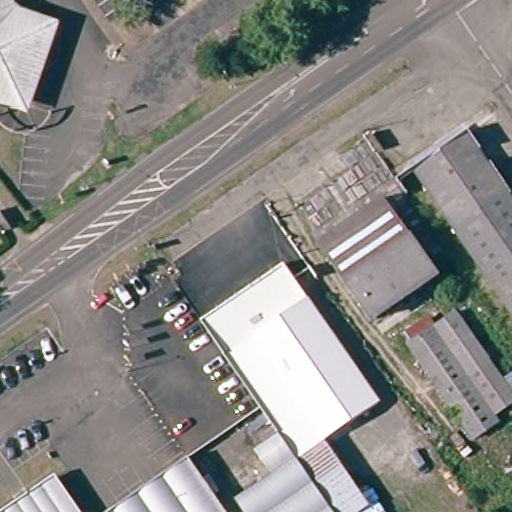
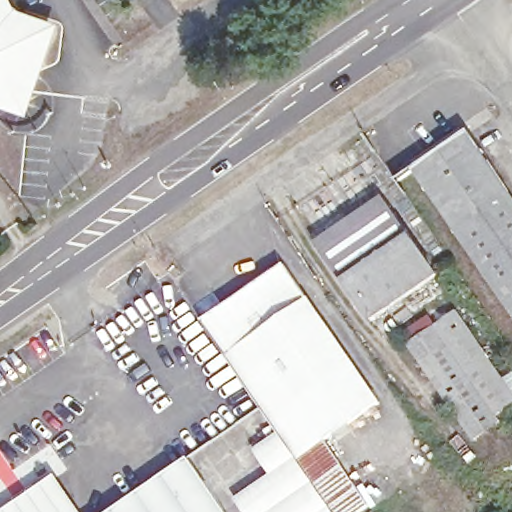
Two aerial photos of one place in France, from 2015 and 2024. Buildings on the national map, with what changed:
unchanged [(6,0),(10,8),(52,21),(35,71),(26,99),(0,90),(0,0),(6,0)]
unchanged [(512,194),(512,306),(415,167),(468,131),(512,194)]
unchanged [(437,271),(374,315),(347,277),(354,272),(326,231),(382,192),(437,271)]
unchanged [(205,321),(287,264),(381,401),(329,437),(299,458),(281,432),(205,321)]
unchanged [(512,388),(512,404),(494,416),(433,328),(458,311),(512,388)]
unchanged [(498,422),(474,438),(409,346),(433,328),(494,416),(498,422)]
unchanged [(337,512),(251,512),(240,497),(276,472),(258,447),(281,432),(299,458),(337,512)]
unchanged [(373,502),(359,512),(337,512),(299,458),(329,437),(373,502)]
unchanged [(190,457),(228,512),(111,512),(190,457)]
unchanged [(56,474),(83,512),(2,512),(56,474)]

